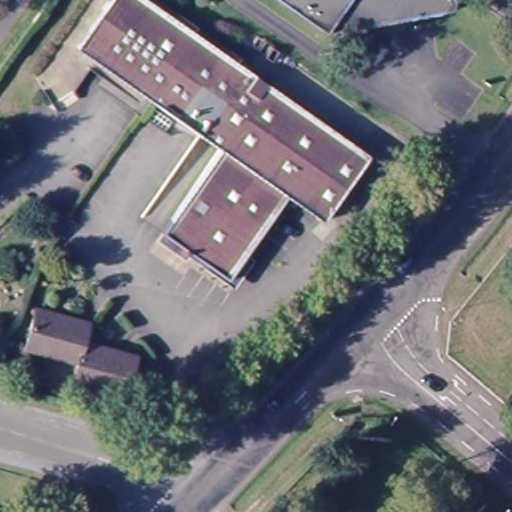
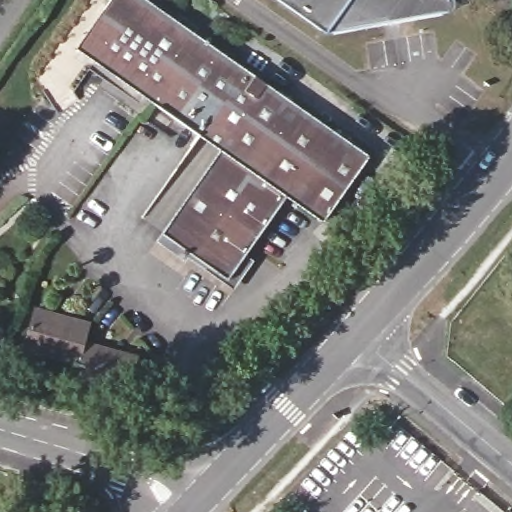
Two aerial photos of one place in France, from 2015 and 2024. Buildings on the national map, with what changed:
unchanged [(236,284),(228,278),(163,231),(221,148),(154,101),(82,49),(117,0),(150,0),(268,83),(375,159),(329,224),(286,194),(241,259),(249,265),(236,284)]
unchanged [(453,3),(453,6),(452,8),(450,11),(447,15),(327,35),(276,0),(453,0),(453,3)]
unchanged [(90,327),(84,346),(136,361),(126,401),(72,386),(77,367),(24,350),(36,312),(90,327)]

